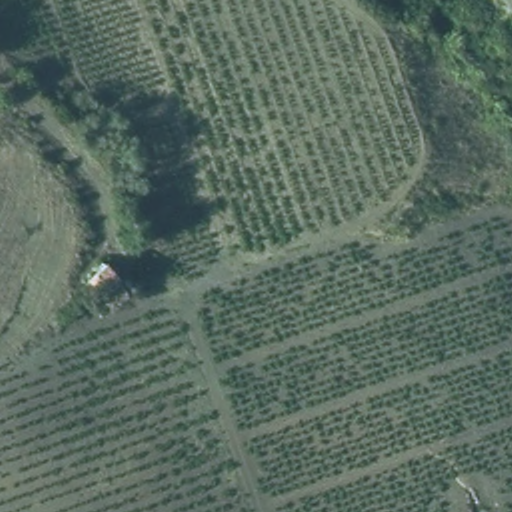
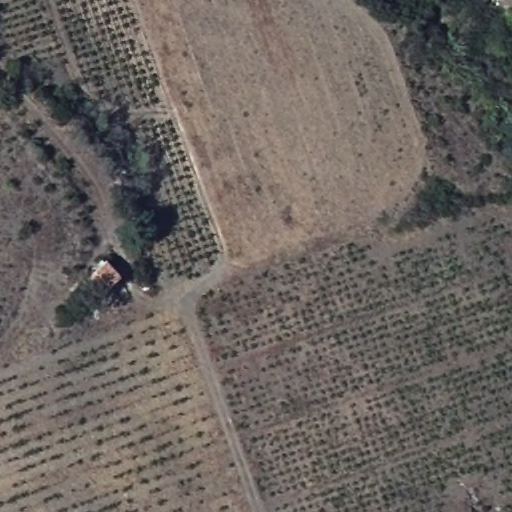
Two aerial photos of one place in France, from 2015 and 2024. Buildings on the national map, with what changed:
unchanged [(108,256),(120,272),(101,286),(89,270),(108,256)]

